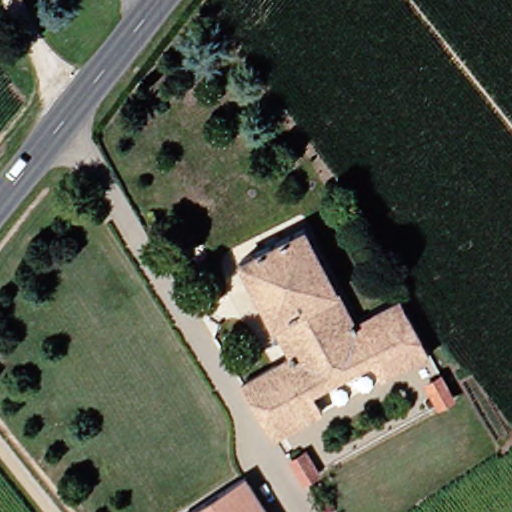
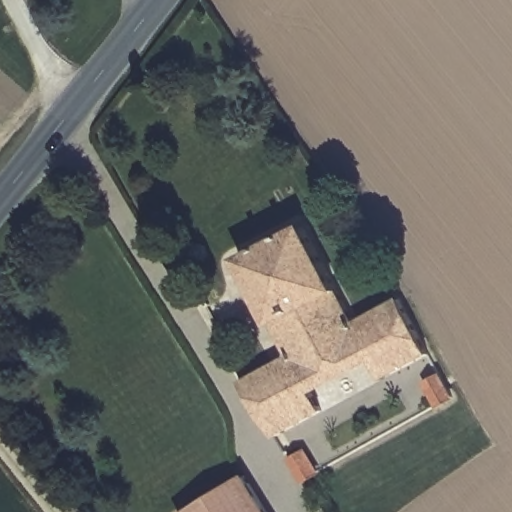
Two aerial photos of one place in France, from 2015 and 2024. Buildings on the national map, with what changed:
unchanged [(230,253),(294,220),(347,314),(387,294),(417,354),(373,379),(363,361),(301,396),(308,410),(268,433),(233,375),(280,350),(230,253)]
unchanged [(429,388),(444,378),(457,404),(442,412),(429,388)]
unchanged [(318,474),(306,482),(292,459),(306,452),(318,474)]
unchanged [(257,512),(204,512),(241,487),(257,512)]

